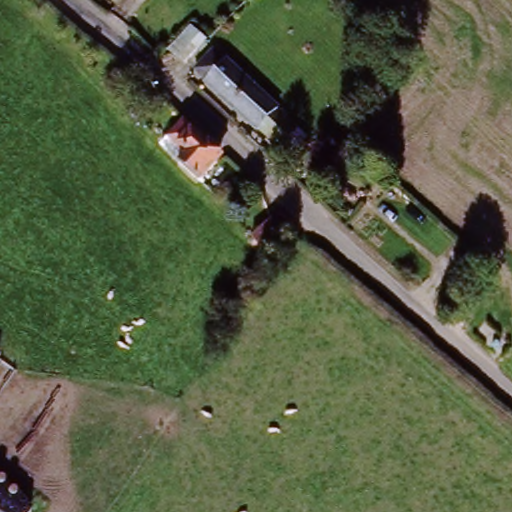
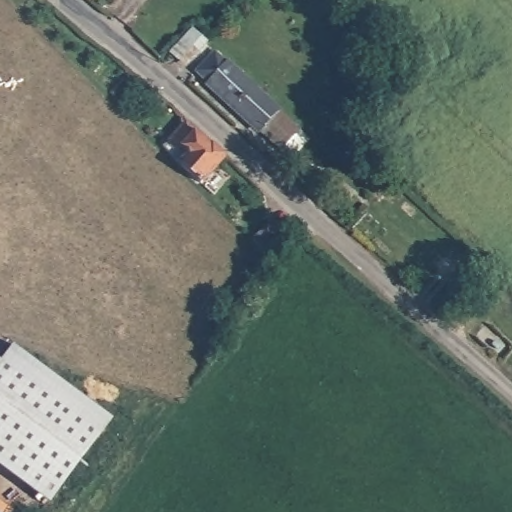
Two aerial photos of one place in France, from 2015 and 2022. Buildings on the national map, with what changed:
unchanged [(204,42),(185,66),(170,53),(190,30),(204,42)]
unchanged [(285,160),(207,90),(227,66),(307,134),(285,160)]
unchanged [(197,198),(180,181),(188,174),(178,164),(204,136),(232,161),(197,198)]
unchanged [(272,220),(289,232),(270,257),(252,239),(272,220)]
new [(3,360),(15,344),(115,420),(50,505),(0,468),(0,359),(0,358),(3,360)]

